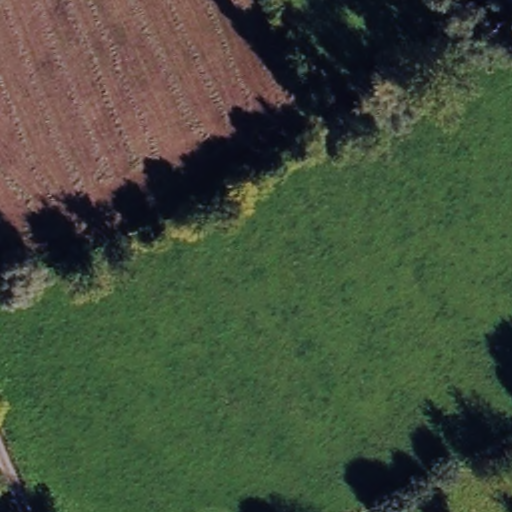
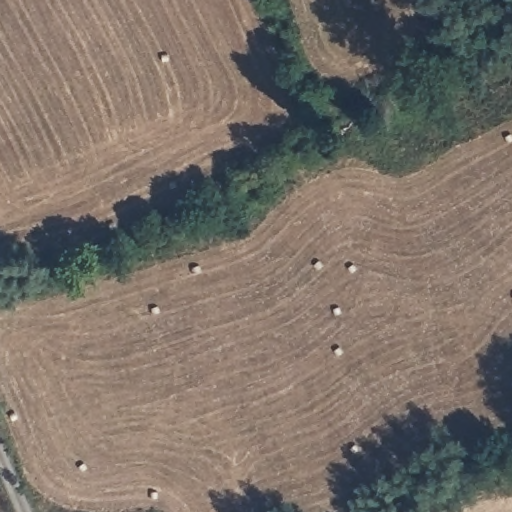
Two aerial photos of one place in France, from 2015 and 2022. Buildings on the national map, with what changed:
[]

